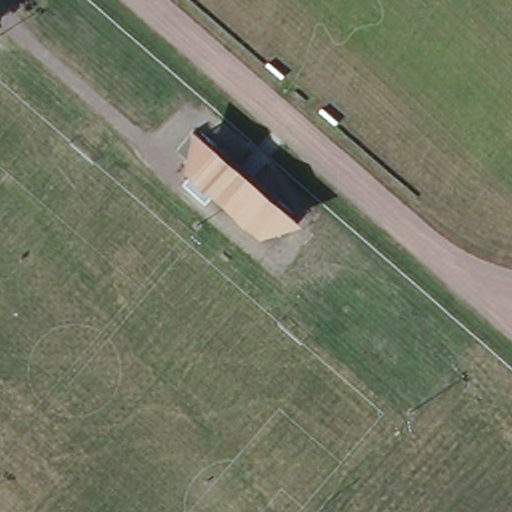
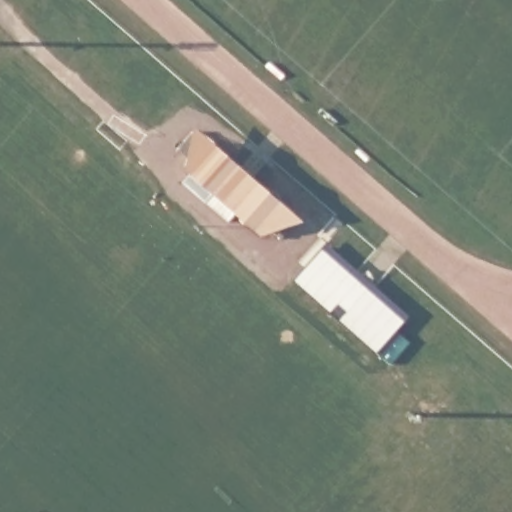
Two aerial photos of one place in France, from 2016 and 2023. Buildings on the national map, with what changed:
unchanged [(199,122),(305,212),(282,240),(271,231),(264,234),(183,165),(184,155),(175,148),(199,122)]
new [(403,314),(377,348),(294,277),(322,242),(403,314)]

